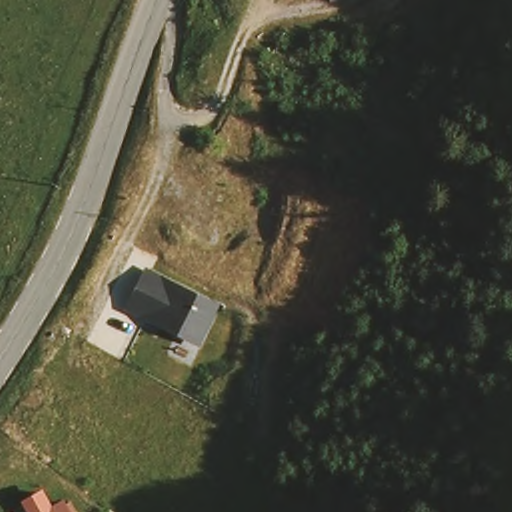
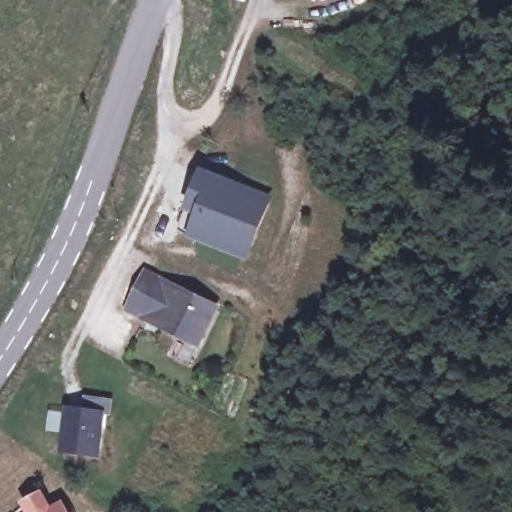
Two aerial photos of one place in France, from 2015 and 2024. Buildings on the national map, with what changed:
new [(199,165),(273,195),(247,262),(182,235),(191,214),(180,209),(199,165)]
unchanged [(208,305),(193,339),(126,308),(142,275),(208,305)]
new [(65,406),(83,407),(85,395),(113,399),(111,414),(106,414),(101,459),(59,452),(65,406)]
unchanged [(62,498),(70,512),(40,512),(62,498)]

